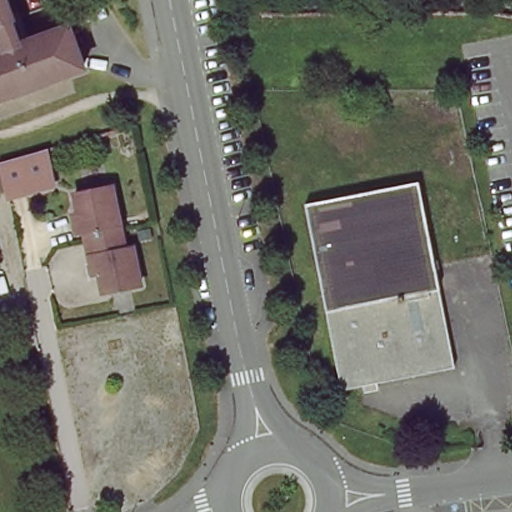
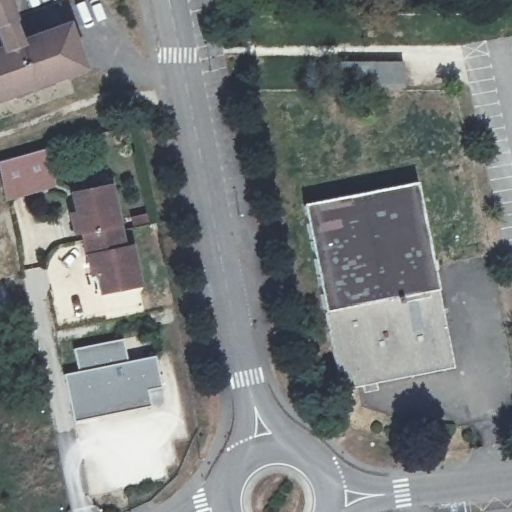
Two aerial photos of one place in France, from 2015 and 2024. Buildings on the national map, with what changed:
unchanged [(10,19),(20,44),(68,26),(85,70),(0,102),(0,53),(5,51),(0,36),(0,0),(6,0),(13,18),(10,19)]
new [(338,62),(403,62),(403,89),(338,89),(338,62)]
unchanged [(0,166),(45,152),(52,190),(5,200),(0,178),(0,166)]
unchanged [(422,182),(454,366),(338,386),(306,203),(422,182)]
unchanged [(120,225),(121,230),(124,244),(132,242),(138,277),(102,285),(98,266),(92,267),(86,237),(84,227),(76,229),(72,212),(78,211),(75,193),(112,185),(120,225)]
new [(78,373),(73,350),(123,340),(128,364),(155,358),(162,390),(148,392),(151,409),(102,419),(100,410),(72,415),(63,376),(78,373)]

